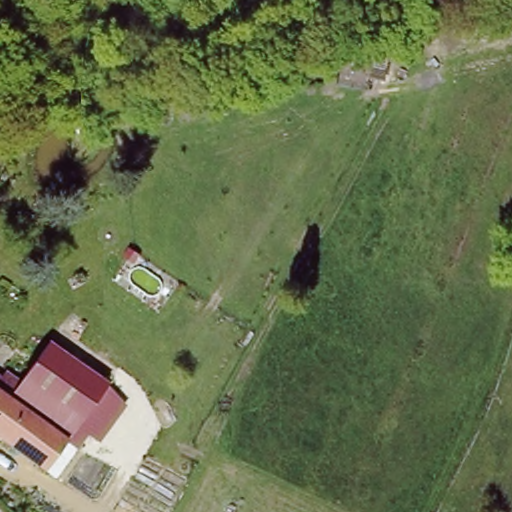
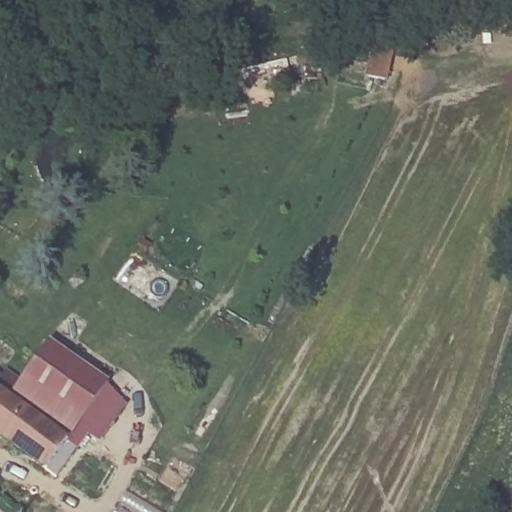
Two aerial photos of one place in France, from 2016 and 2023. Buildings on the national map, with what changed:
unchanged [(0,374),(1,373),(28,331),(108,382),(73,438),(0,391),(0,374)]
unchanged [(0,372),(1,373),(0,374),(0,372)]
unchanged [(81,443),(63,473),(0,433),(0,391),(73,438),(81,443)]

